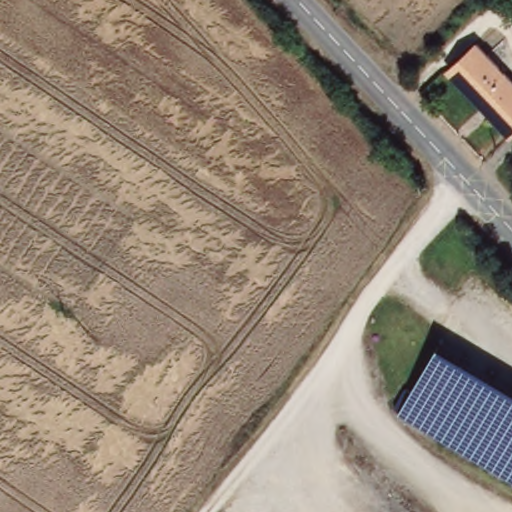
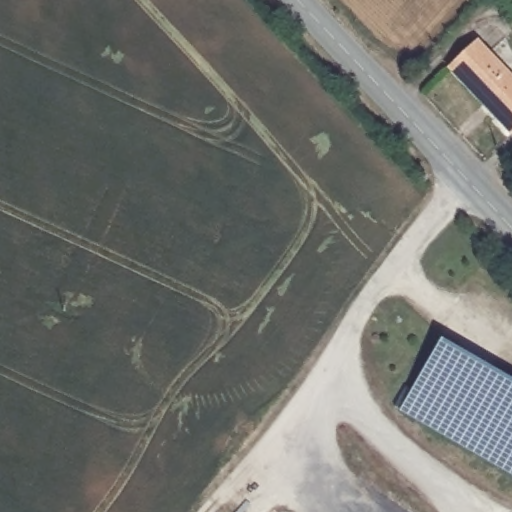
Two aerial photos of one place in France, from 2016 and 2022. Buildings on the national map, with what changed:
unchanged [(478,44),(512,80),(512,134),(451,69),(478,44)]
unchanged [(512,385),(512,479),(399,411),(440,342),(512,385)]

